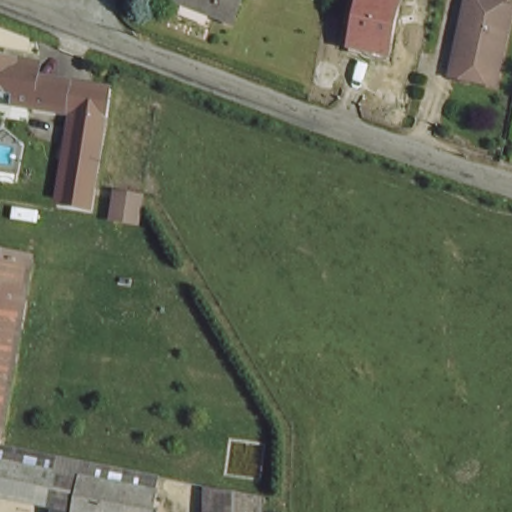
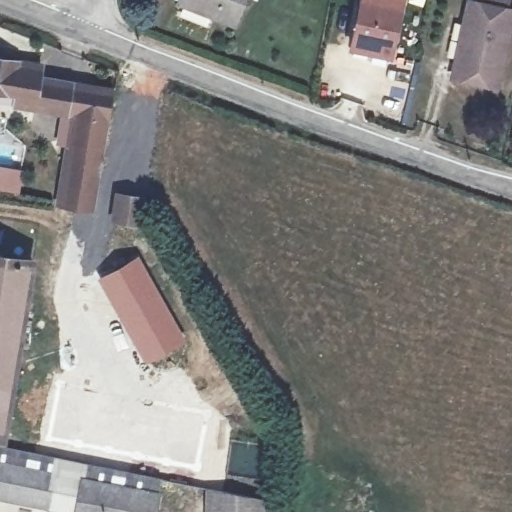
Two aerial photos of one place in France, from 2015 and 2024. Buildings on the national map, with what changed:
unchanged [(180,3),(181,0),(240,0),(231,25),(180,3)]
unchanged [(347,50),(356,0),(380,0),(398,4),(387,57),(347,50)]
unchanged [(465,24),(470,1),(512,9),(512,18),(497,87),(453,78),(456,61),(465,24)]
unchanged [(0,100),(0,66),(36,71),(35,84),(70,89),(67,118),(14,112),(14,102),(0,100)]
unchanged [(67,118),(72,84),(76,72),(112,81),(90,210),(54,205),(67,122),(67,118)]
new [(23,170),(19,193),(0,190),(0,166),(23,170)]
unchanged [(109,216),(113,193),(140,199),(137,221),(109,216)]
new [(139,255),(189,342),(147,366),(98,279),(139,255)]
unchanged [(0,433),(0,263),(28,267),(0,433)]
unchanged [(90,466),(88,480),(83,479),(76,512),(63,512),(50,510),(56,475),(59,460),(90,466)]
unchanged [(0,500),(0,464),(56,475),(50,510),(0,500)]
unchanged [(88,480),(156,493),(152,512),(76,512),(83,479),(88,480)]
unchanged [(259,499),(258,512),(205,512),(206,488),(259,499)]

